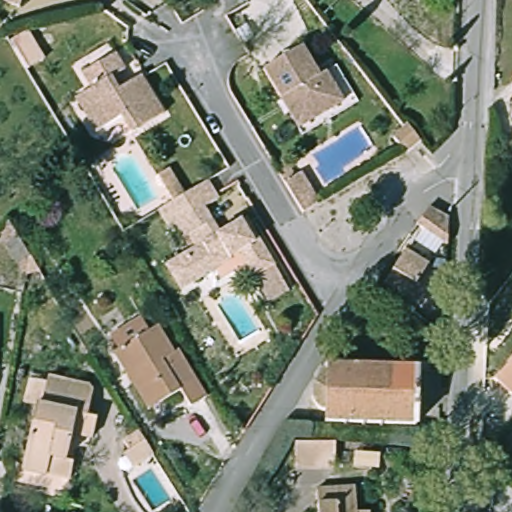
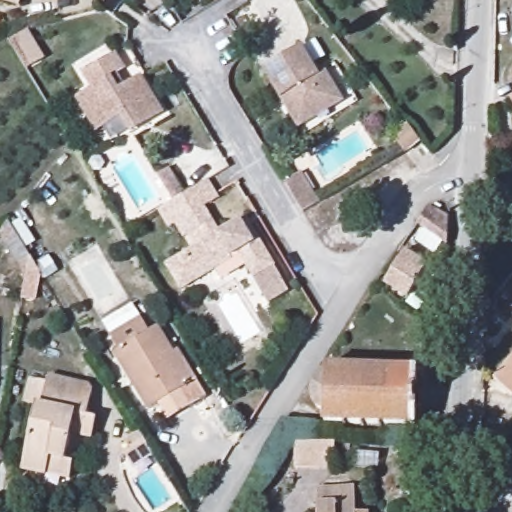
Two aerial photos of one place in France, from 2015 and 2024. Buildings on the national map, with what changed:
unchanged [(318,81),(328,76),(344,109),(304,132),(285,100),(280,102),(264,72),(300,51),(318,81)]
unchanged [(128,70),(113,79),(120,90),(144,78),(166,117),(133,136),(126,124),(105,134),(85,96),(93,91),(87,76),(120,59),(128,70)]
unchanged [(406,158),(401,152),(394,144),(411,129),(423,143),(406,158)]
unchanged [(160,177),(175,168),(191,195),(211,182),(223,201),(210,208),(178,226),(168,208),(176,204),(160,177)]
unchanged [(302,168),(319,199),(303,210),(286,178),(302,168)]
unchanged [(448,216),(446,244),(418,220),(430,202),(448,216)]
unchanged [(273,308),(257,278),(245,255),(235,260),(230,254),(217,261),(221,270),(186,291),(172,264),(201,249),(193,236),(187,240),(178,226),(210,208),(226,233),(250,220),(277,268),(293,296),(273,308)]
unchanged [(406,254),(429,268),(410,299),(387,286),(406,254)]
unchanged [(128,373),(115,351),(156,327),(175,357),(183,354),(208,399),(193,408),(180,390),(161,400),(148,407),(128,373)]
unchanged [(512,356),(512,396),(492,380),(512,356)]
unchanged [(331,408),(325,408),(316,404),(314,390),(319,383),(331,380),(333,366),(419,368),(419,424),(333,423),(331,408)]
unchanged [(90,394),(86,415),(101,418),(98,434),(78,431),(73,459),(53,458),(51,472),(26,468),(40,377),(83,384),(90,394)]
unchanged [(341,445),(340,473),(298,474),(296,445),(341,445)]
unchanged [(326,478),(363,478),(363,503),(374,503),(374,512),(326,512),(326,478)]

